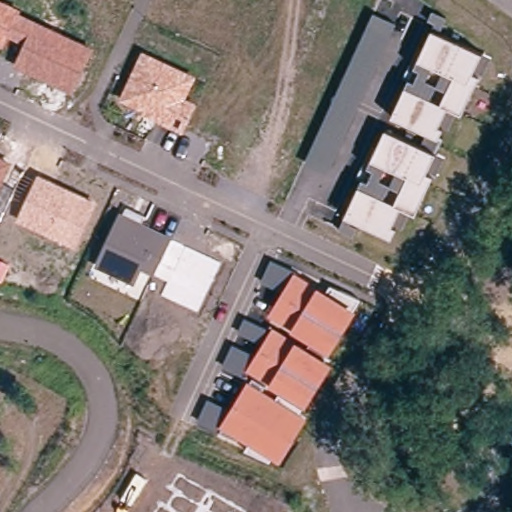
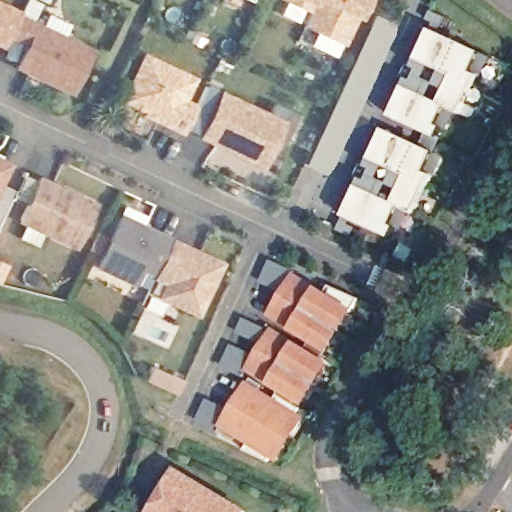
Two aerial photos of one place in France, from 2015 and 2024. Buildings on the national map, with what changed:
unchanged [(20,13),(94,47),(72,94),(15,66),(25,44),(9,38),(4,48),(0,46),(0,0),(21,9),(20,13)]
unchanged [(56,0),(51,10),(34,2),(35,0),(56,0)]
new [(227,1),(228,0),(251,0),(246,10),(227,1)]
new [(310,20),(304,18),(297,33),(279,24),(286,9),(281,7),(285,0),(367,0),(343,52),(342,51),(335,67),(310,55),(317,40),(304,34),(310,20)]
unchanged [(447,18),(440,34),(490,59),(481,76),(462,115),(457,113),(449,132),(445,130),(435,153),(443,157),(416,215),(411,214),(403,232),(397,229),(392,239),(360,224),(353,238),(338,231),(362,179),(357,177),(364,163),(369,165),(386,129),(418,146),(425,134),(391,119),(409,79),(404,76),(409,65),(414,68),(434,24),(427,20),(431,11),(447,18)]
unchanged [(397,23),(327,175),(304,164),(373,13),(397,23)]
unchanged [(196,76),(186,99),(198,104),(182,134),(119,102),(142,51),(196,76)]
new [(287,119),(265,168),(198,138),(222,89),(287,119)]
unchanged [(13,164),(5,184),(16,189),(1,221),(0,221),(0,157),(13,164)]
unchanged [(97,204),(77,249),(17,222),(37,174),(97,204)]
unchanged [(173,237),(155,275),(143,269),(134,285),(95,265),(120,213),(173,237)]
new [(225,262),(201,318),(158,299),(165,283),(155,279),(155,275),(173,237),(225,262)]
unchanged [(295,271),(325,293),(330,285),(361,300),(357,311),(329,354),(268,315),(282,294),(260,284),(271,260),(295,271)]
unchanged [(271,329),(272,328),(335,364),(306,407),(250,374),(247,379),(222,367),(232,343),(257,355),(263,344),(238,333),(244,319),(271,329)]
unchanged [(275,398),(278,394),(303,409),(300,414),(307,419),(279,464),(272,459),(270,463),(246,451),(250,444),(221,429),(219,433),(198,423),(207,399),(231,410),(248,383),(275,398)]
new [(251,510),(250,512),(152,512),(179,468),(251,510)]

